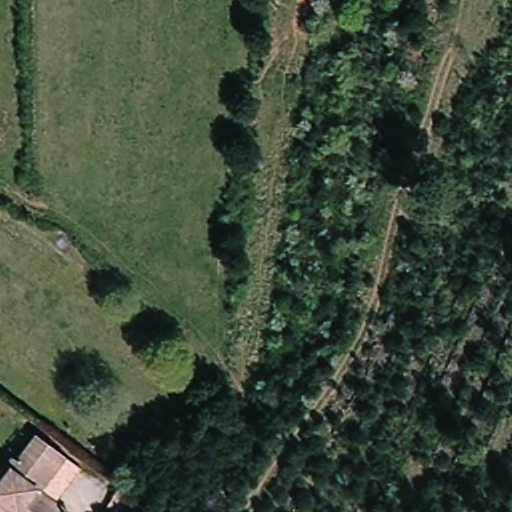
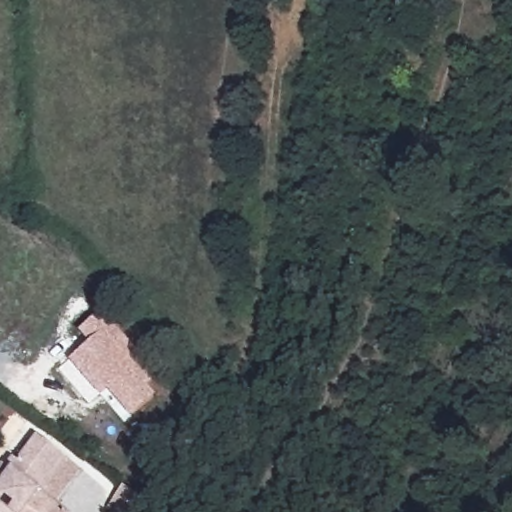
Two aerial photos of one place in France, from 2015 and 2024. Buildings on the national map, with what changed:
new [(105,387),(98,395),(68,359),(89,341),(78,330),(102,310),(156,375),(146,383),(155,394),(130,416),(105,387)]
unchanged [(38,436),(80,469),(55,502),(35,487),(50,465),(30,450),(38,436)]
unchanged [(15,459),(20,463),(30,450),(50,465),(35,487),(69,512),(0,512),(0,467),(9,468),(15,459)]
unchanged [(125,484),(139,496),(125,512),(114,512),(106,505),(125,484)]

